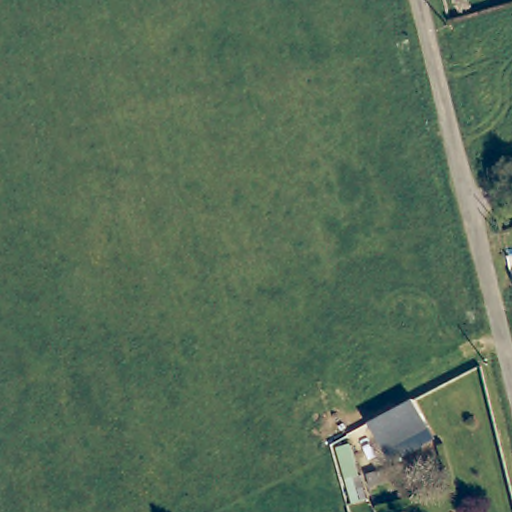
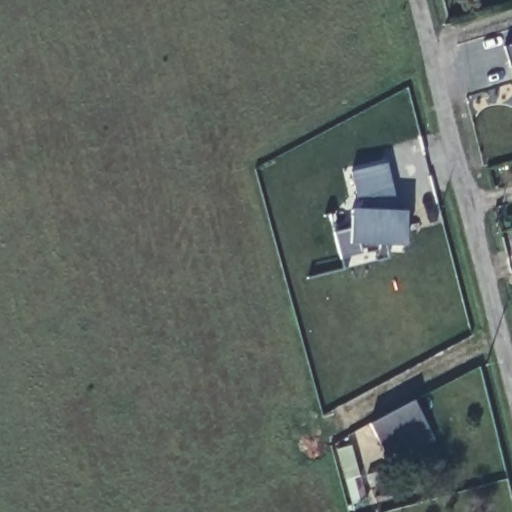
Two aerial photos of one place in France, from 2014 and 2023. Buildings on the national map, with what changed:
new [(512,42),(512,65),(508,66),(502,45),(512,42)]
new [(352,229),(352,212),(362,212),(353,173),(386,166),(395,214),(407,215),(407,246),(362,243),(365,254),(342,260),(336,233),(352,229)]
unchanged [(428,432),(385,455),(371,429),(415,405),(428,432)]

